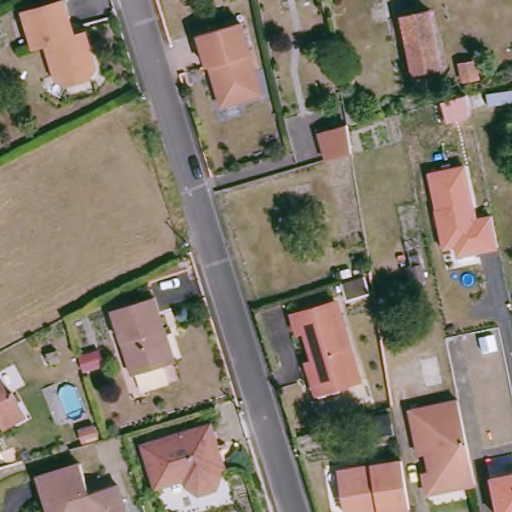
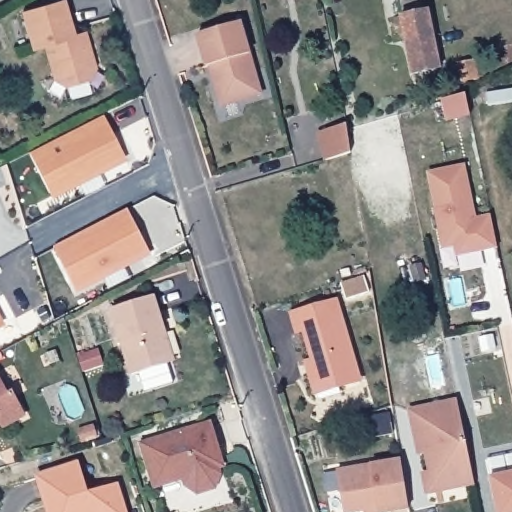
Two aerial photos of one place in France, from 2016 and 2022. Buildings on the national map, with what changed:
unchanged [(78,44),(91,42),(99,64),(92,80),(70,86),(59,77),(48,42),(35,47),(25,17),(63,2),(78,44)]
unchanged [(440,70),(413,75),(403,19),(430,14),(440,70)]
unchanged [(242,27),(262,97),(246,103),(235,97),(218,102),(212,85),(216,80),(212,67),(208,71),(199,40),(242,27)]
unchanged [(476,80),(463,82),(460,67),(472,63),(476,80)]
new [(52,197),(28,152),(102,113),(125,160),(52,197)]
unchanged [(348,125),(350,129),(356,152),(331,160),(331,159),(323,132),(348,125)]
unchanged [(460,257),(457,247),(445,251),(430,172),(469,165),(480,217),(493,215),(500,249),(460,257)]
new [(151,256),(77,292),(54,247),(128,208),(151,256)]
unchanged [(165,325),(160,327),(172,361),(135,374),(113,310),(155,295),(165,325)]
unchanged [(365,382),(345,389),(342,382),(322,388),(307,339),(301,341),(295,320),(341,306),(365,382)]
new [(5,325),(0,327),(0,315),(5,325)]
unchanged [(60,362),(47,366),(45,356),(58,353),(60,362)]
unchanged [(9,395),(12,392),(25,417),(5,427),(0,416),(0,378),(9,395)]
unchanged [(427,497),(423,476),(430,473),(426,453),(420,455),(411,411),(458,398),(477,487),(427,497)]
unchanged [(397,439),(378,442),(375,422),(394,420),(397,439)]
unchanged [(225,465),(218,467),(221,475),(214,487),(200,491),(187,483),(185,477),(158,485),(145,443),(213,423),(225,465)]
unchanged [(85,462),(95,491),(120,484),(128,507),(130,512),(53,512),(42,476),(85,462)]
unchanged [(410,512),(382,512),(382,509),(365,512),(348,512),(341,472),(405,462),(412,512),(410,512)]
unchanged [(512,475),(512,512),(500,512),(492,479),(512,475)]

